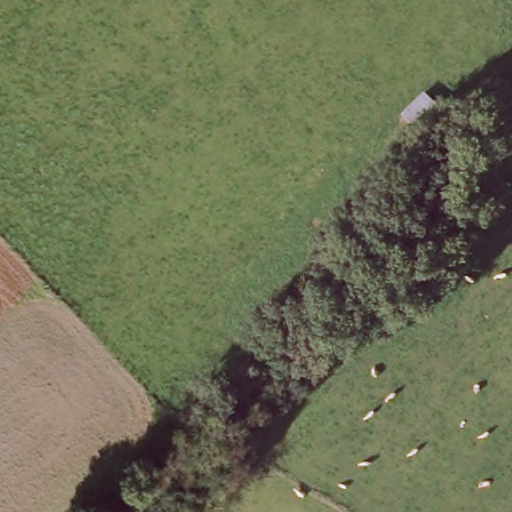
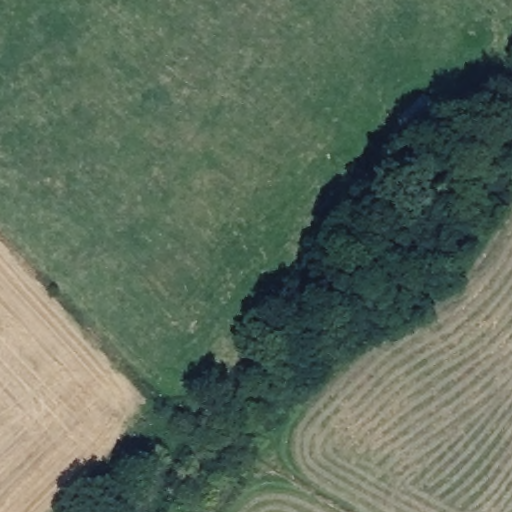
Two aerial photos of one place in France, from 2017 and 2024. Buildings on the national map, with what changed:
unchanged [(443,116),(420,138),(402,120),(425,99),(443,116)]

